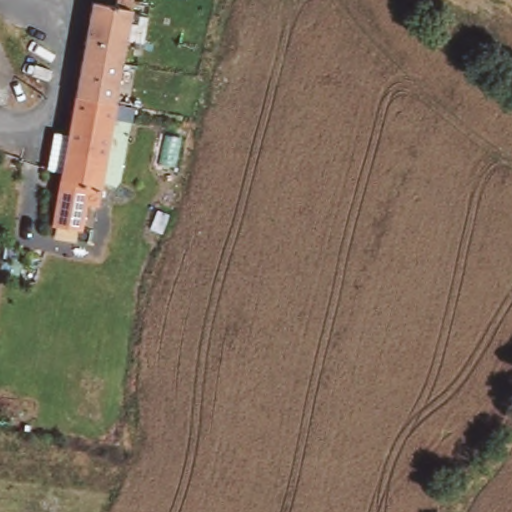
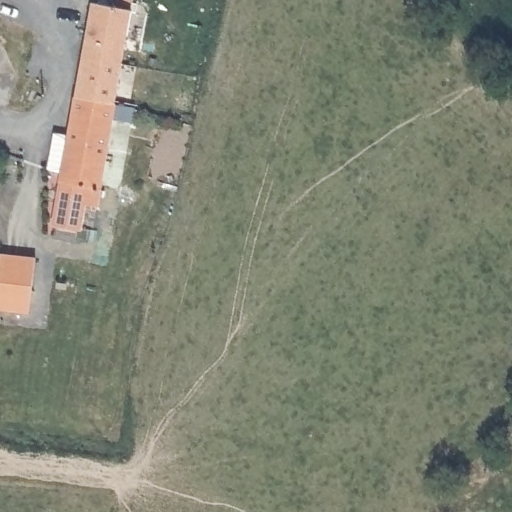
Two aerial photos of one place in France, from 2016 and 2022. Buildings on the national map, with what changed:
unchanged [(113,0),(118,0),(132,3),(112,106),(67,96),(84,4),(110,10),(113,0)]
unchanged [(67,96),(112,106),(96,188),(81,187),(74,229),(43,223),(56,152),(67,96)]
new [(34,256),(28,313),(0,310),(0,253),(34,256)]

